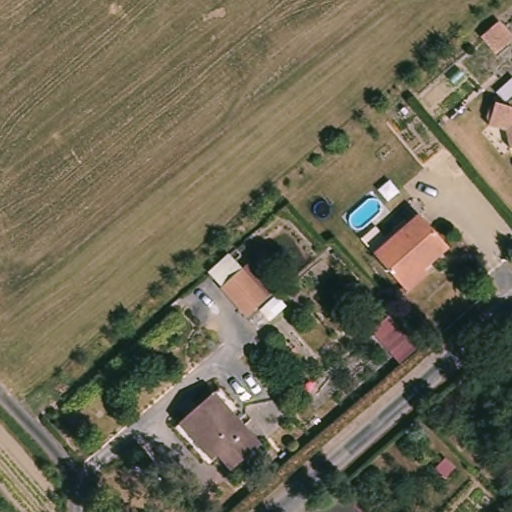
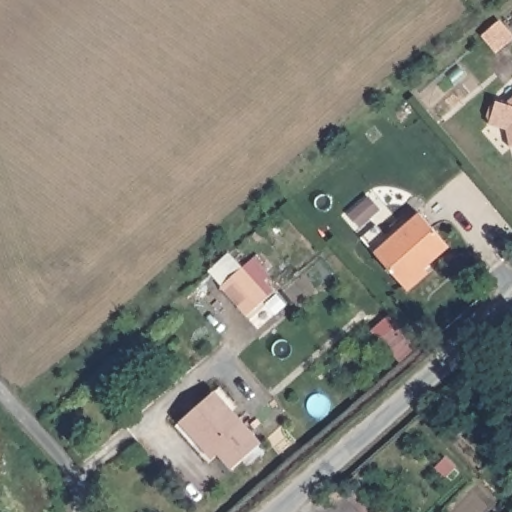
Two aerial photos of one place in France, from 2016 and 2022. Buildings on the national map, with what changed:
unchanged [(480,111),(483,103),(488,101),(489,98),(501,102),(512,92),(512,144),(506,146),(501,126),(482,119),(483,116),(480,111)]
unchanged [(374,258),(360,243),(376,230),(385,240),(405,224),(408,228),(418,219),(429,231),(384,269),(374,258)]
unchanged [(449,254),(434,266),(438,271),(408,297),(384,269),(429,231),(449,254)]
unchanged [(254,257),(278,288),(247,319),(220,290),(254,257)]
unchanged [(221,390),(238,410),(234,413),(265,447),(233,475),(219,460),(210,468),(176,430),(221,390)]

